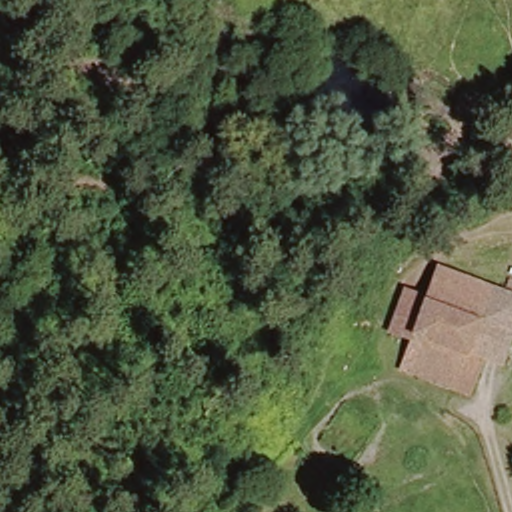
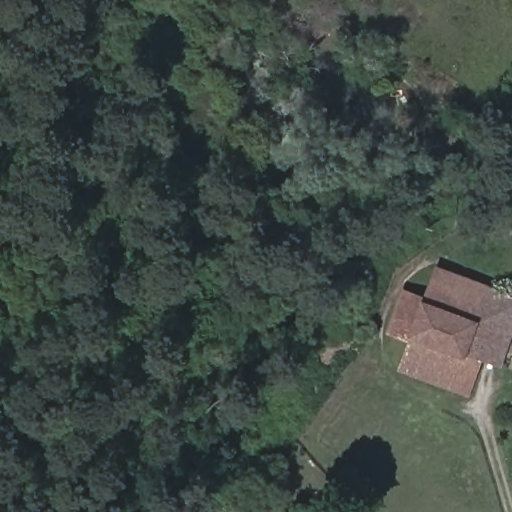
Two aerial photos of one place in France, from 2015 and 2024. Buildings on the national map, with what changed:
unchanged [(359,79),(363,70),(374,75),(370,85),(359,79)]
unchanged [(434,379),(399,366),(412,331),(408,330),(392,325),(402,290),(425,297),(425,295),(435,266),(474,278),(479,261),(496,266),(491,283),(506,288),(512,265),(512,331),(503,360),(483,353),(470,391),(434,379)]

